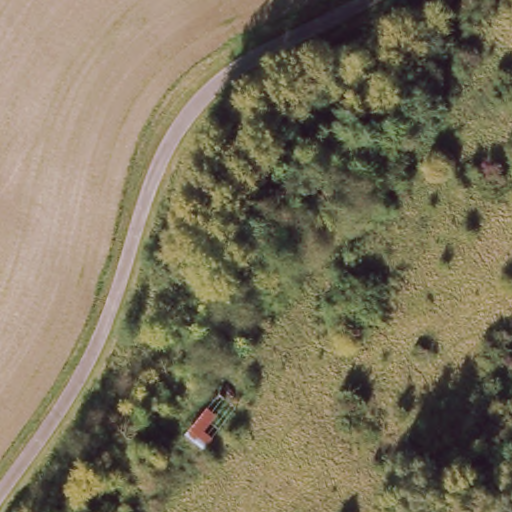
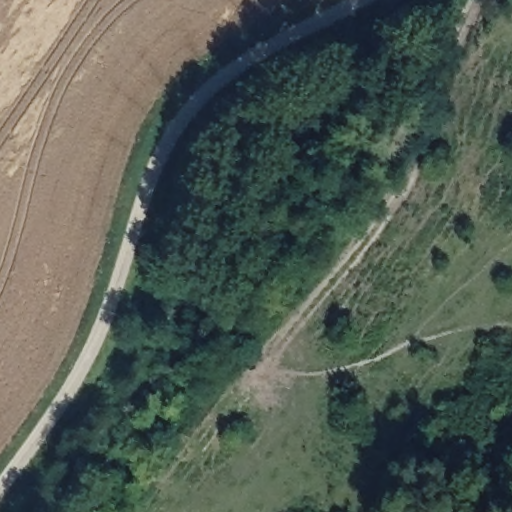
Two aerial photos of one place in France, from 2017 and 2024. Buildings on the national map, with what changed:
unchanged [(219,391),(241,406),(208,452),(188,436),(219,391)]

